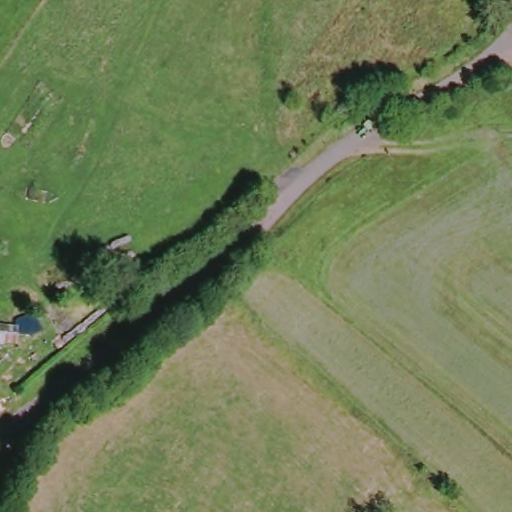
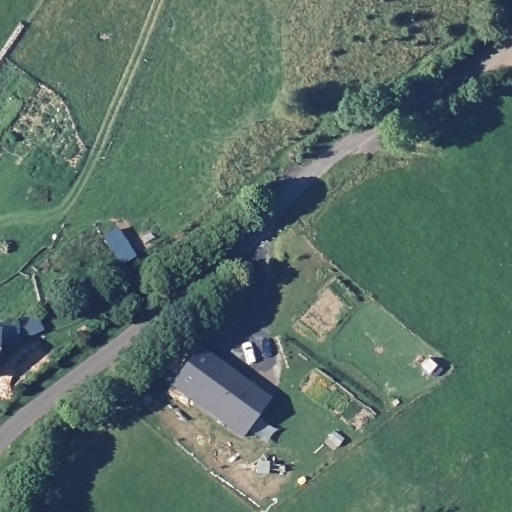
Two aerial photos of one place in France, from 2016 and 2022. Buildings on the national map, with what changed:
unchanged [(5,327),(25,329),(23,347),(3,345),(0,371),(0,334),(5,335),(5,327)]
new [(176,367),(197,349),(269,400),(243,439),(170,388),(176,367)]

